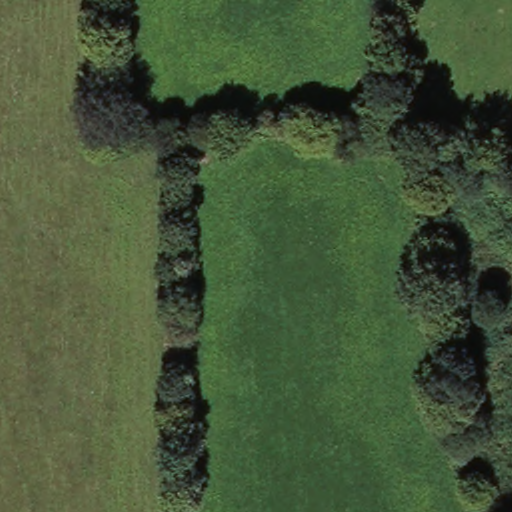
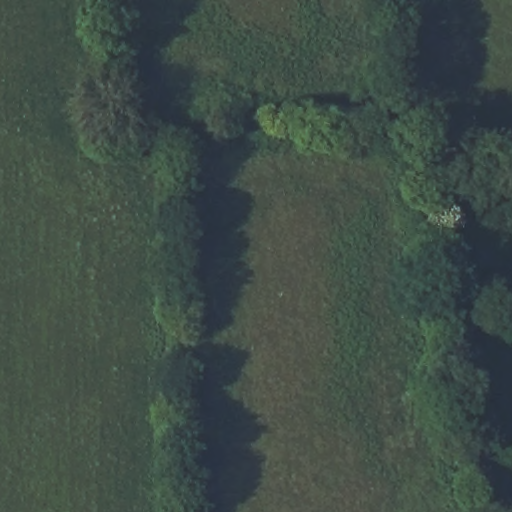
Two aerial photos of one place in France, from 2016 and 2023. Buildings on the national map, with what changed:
[]

